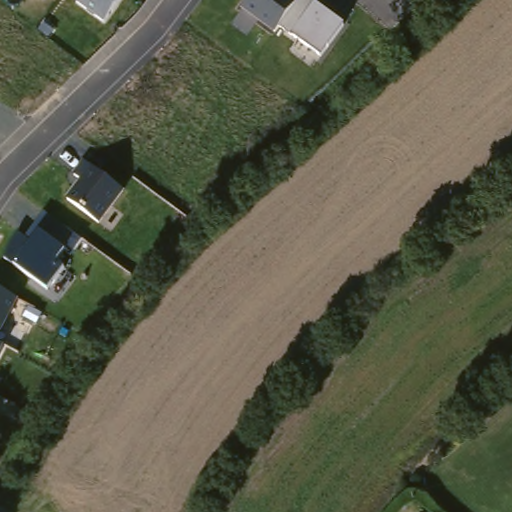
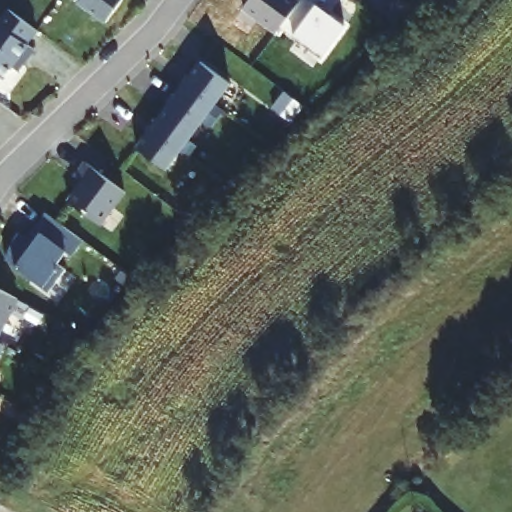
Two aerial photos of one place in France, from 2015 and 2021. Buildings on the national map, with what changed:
unchanged [(77,1),(77,0),(122,0),(106,23),(77,1)]
unchanged [(322,57),(293,35),(280,26),(274,33),(242,12),(251,0),(313,0),(317,4),(347,25),(322,57)]
new [(202,62),(232,84),(217,105),(225,111),(213,127),(204,121),(190,140),(199,146),(192,155),(184,148),(168,169),(139,146),(202,62)]
unchanged [(101,224),(69,200),(83,181),(77,176),(86,164),(124,193),(101,224)]
unchanged [(71,254),(66,250),(57,263),(64,270),(50,289),(16,266),(4,259),(20,234),(27,239),(47,213),(83,239),(71,254)]
unchanged [(0,289),(19,299),(0,339),(0,289)]
unchanged [(0,356),(0,342),(6,345),(0,356)]

